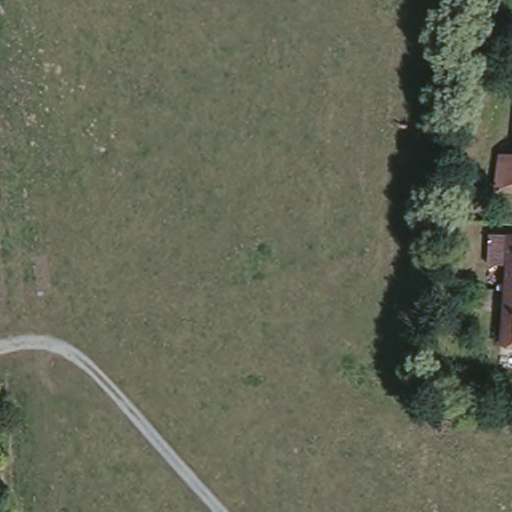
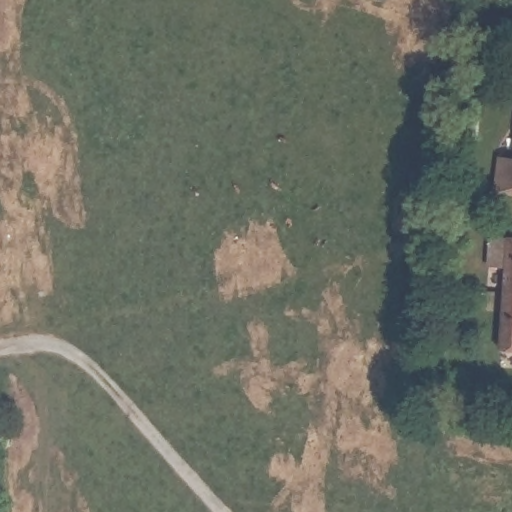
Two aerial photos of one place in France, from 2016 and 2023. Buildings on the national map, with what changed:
unchanged [(497,160),(512,161),(512,192),(493,191),(497,160)]
unchanged [(510,287),(511,262),(492,261),(495,232),(512,233),(512,346),(506,345),(510,287)]

